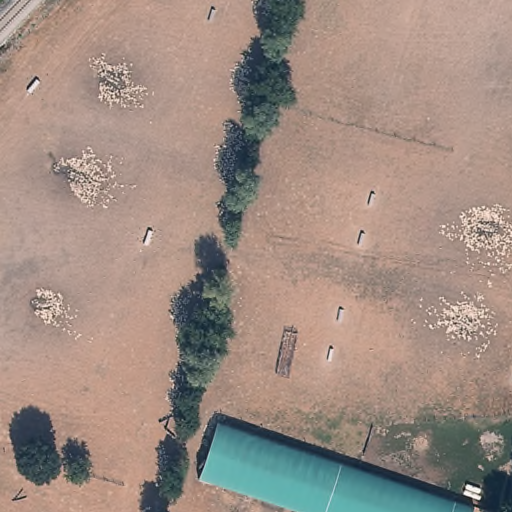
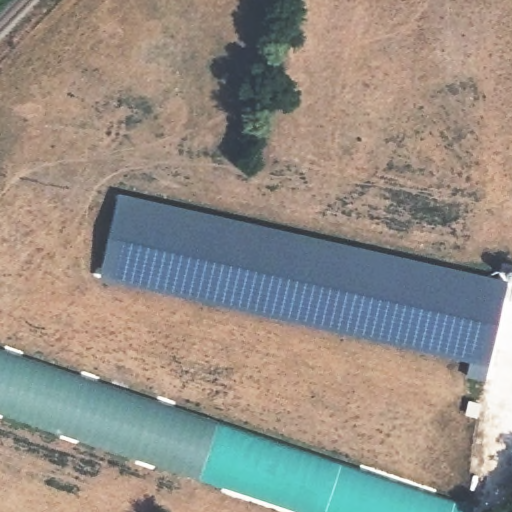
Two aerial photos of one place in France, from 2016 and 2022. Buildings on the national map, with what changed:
new [(469,361),(97,279),(116,192),(506,280),(490,362),(485,381),(466,377),(470,357),(469,361)]
unchanged [(214,420),(471,502),(468,512),(456,512),(448,510),(447,512),(304,512),(195,477),(214,420)]

